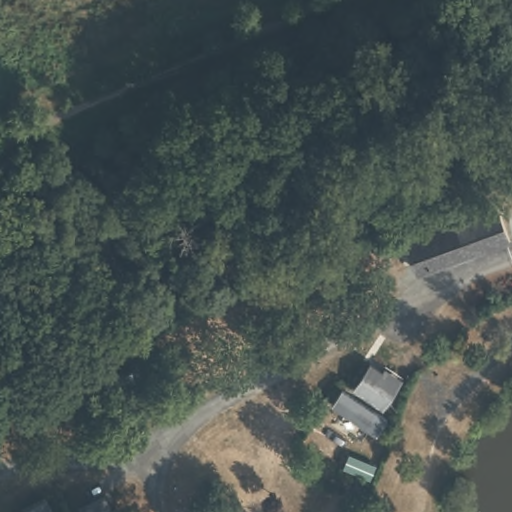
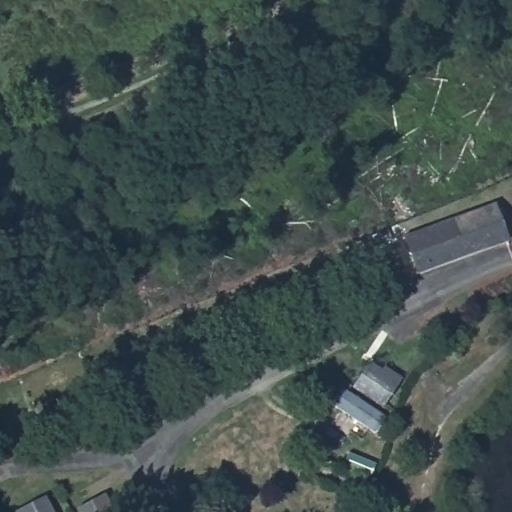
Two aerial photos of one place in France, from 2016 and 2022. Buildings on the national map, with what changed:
unchanged [(458,257),(413,275),(400,240),(488,206),(495,225),(501,241),(458,257)]
unchanged [(370,360),(385,370),(387,366),(402,376),(398,382),(383,405),(368,427),(338,407),(355,385),(370,360)]
unchanged [(110,505),(114,503),(119,512),(81,512),(76,504),(102,490),(110,505)]
unchanged [(14,509),(20,505),(43,493),(53,512),(15,512),(14,509)]

